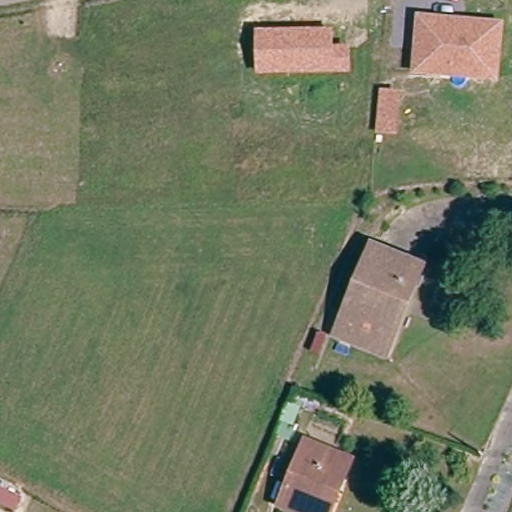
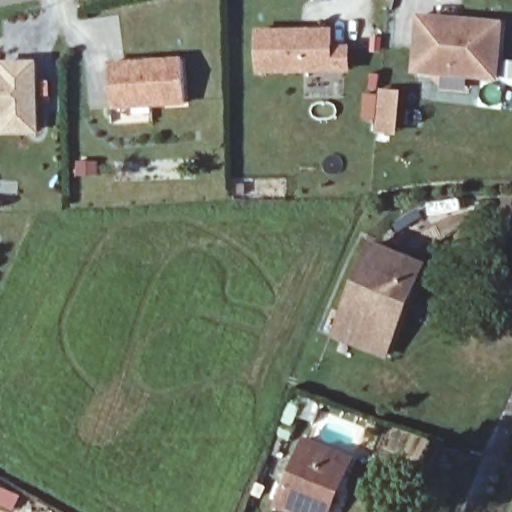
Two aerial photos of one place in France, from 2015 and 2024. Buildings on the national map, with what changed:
unchanged [(503,21),(498,81),(412,74),(417,12),(503,21)]
unchanged [(334,27),(334,45),(352,45),(352,74),(255,75),(256,28),(334,27)]
new [(114,109),(111,65),(182,59),(186,105),(114,109)]
new [(39,134),(3,135),(2,120),(0,121),(0,71),(1,71),(1,62),(36,63),(39,134)]
unchanged [(402,91),(398,135),(376,133),(380,89),(402,91)]
unchanged [(354,345),(335,337),(371,249),(424,270),(393,340),(385,357),(354,345)]
unchanged [(279,505),(307,436),(353,453),(339,489),(330,512),(299,512),(279,505)]
unchanged [(1,491),(0,494),(0,491),(1,491)]

